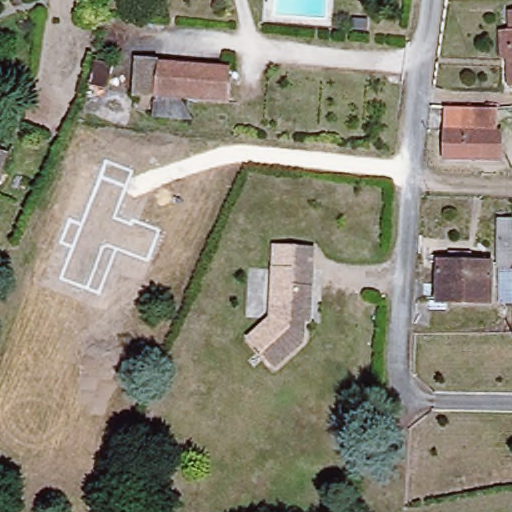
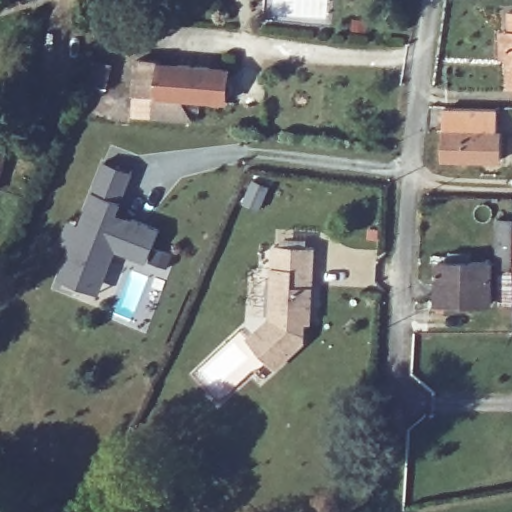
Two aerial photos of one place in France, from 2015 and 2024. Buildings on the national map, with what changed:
unchanged [(503,84),(502,22),(509,22),(510,6),(512,6),(512,83),(503,84)]
unchanged [(158,59),(229,64),(227,105),(185,103),(184,121),(148,119),(147,98),(126,97),(132,58),(158,59)]
unchanged [(492,109),(493,131),(498,132),(499,161),(444,161),(445,109),(492,109)]
new [(88,284),(60,273),(73,241),(61,236),(71,213),(82,218),(103,166),(109,150),(136,161),(130,176),(118,207),(133,214),(161,226),(150,256),(117,242),(101,289),(88,284)]
unchanged [(487,218),(512,218),(512,301),(486,302),(486,262),(487,218)]
unchanged [(273,369),(247,341),(270,319),(272,248),(311,248),(310,314),(304,315),(304,340),(273,369)]
unchanged [(485,302),(434,303),(435,261),(485,262),(486,262),(486,302),(485,302)]

